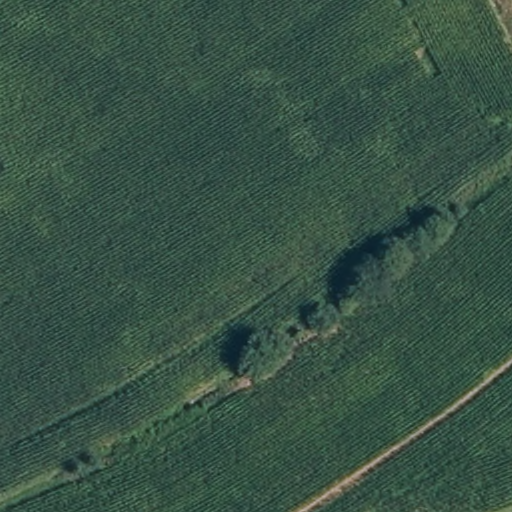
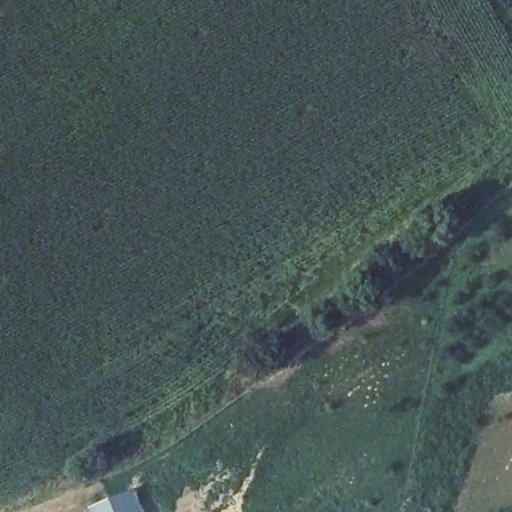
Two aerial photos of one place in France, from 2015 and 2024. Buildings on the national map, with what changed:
new [(91,509),(134,493),(142,512),(93,512),(91,509)]

